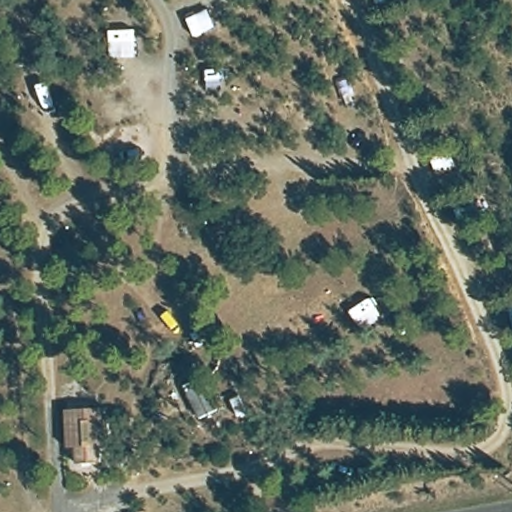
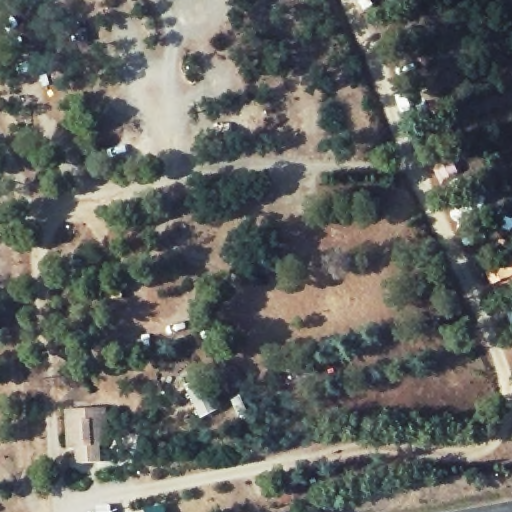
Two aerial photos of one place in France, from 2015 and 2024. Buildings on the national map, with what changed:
unchanged [(105,410),(107,448),(100,448),(101,463),(75,465),(74,450),(66,451),(63,413),(105,410)]

